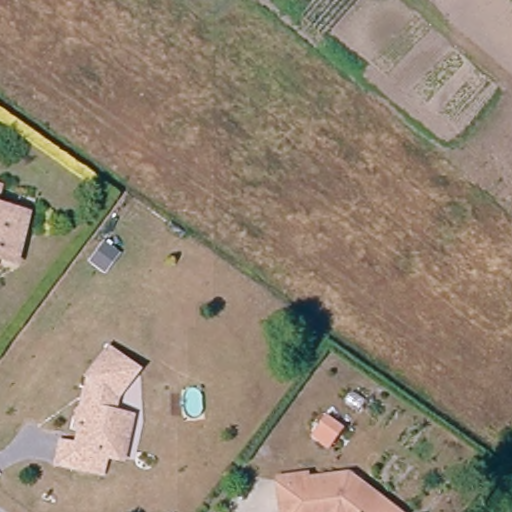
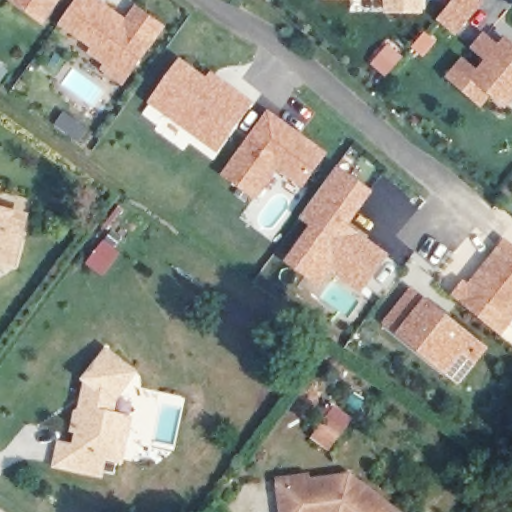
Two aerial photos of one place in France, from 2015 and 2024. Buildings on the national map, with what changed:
new [(45,24),(10,0),(62,0),(45,24)]
new [(125,19),(135,4),(167,27),(123,86),(100,70),(104,64),(87,53),(91,47),(59,26),(78,0),(101,0),(125,19)]
new [(425,13),(385,15),(385,0),(425,0),(425,13)]
new [(452,0),(479,0),(481,2),(455,32),(437,17),(452,0)]
new [(478,74),(489,61),(473,49),(484,36),(499,49),(506,41),(512,47),(512,96),(504,105),(490,93),(480,105),(448,78),(463,61),(478,74)]
new [(207,78),(212,71),(256,103),(219,154),(148,104),(181,58),(207,78)]
new [(329,153),(303,190),(277,170),(256,199),(221,174),(268,110),(329,153)]
new [(374,192),(349,225),(391,254),(362,294),(332,273),(321,289),(284,262),(311,225),(300,219),(337,166),(374,192)]
unchanged [(18,263),(0,259),(0,211),(28,217),(18,263)]
new [(512,244),(512,325),(503,336),(452,296),(463,279),(469,283),(505,239),(512,244)]
new [(426,298),(489,349),(460,384),(395,334),(383,325),(412,287),(426,298)]
unchanged [(67,444),(85,444),(86,433),(80,432),(81,409),(84,409),(85,385),(80,379),(104,350),(134,374),(112,400),(112,414),(127,415),(125,454),(115,454),(114,468),(83,466),(66,465),(67,444)]
unchanged [(309,474),(311,482),(336,479),(349,477),(362,486),(396,512),(283,512),(278,480),(309,474)]

